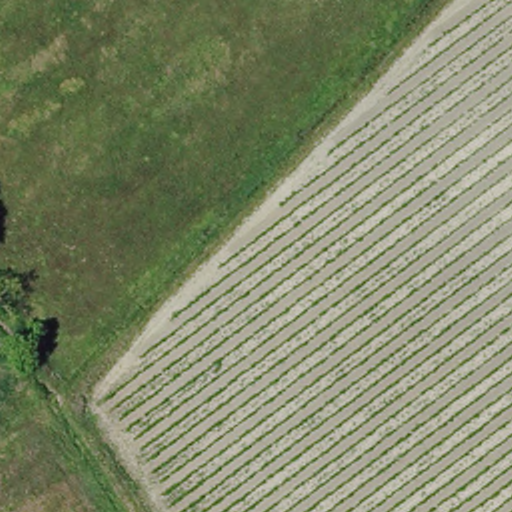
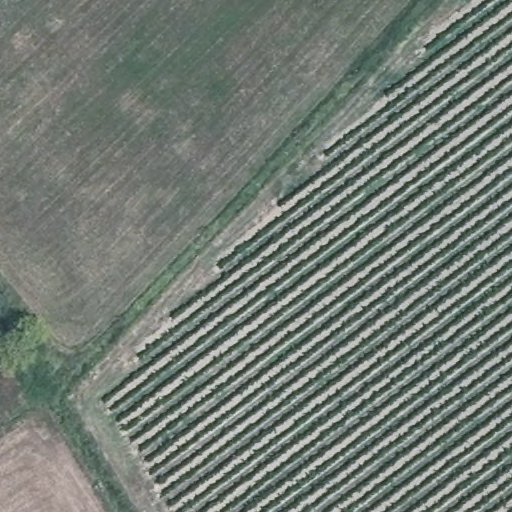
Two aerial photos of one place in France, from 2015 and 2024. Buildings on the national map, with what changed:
[]

